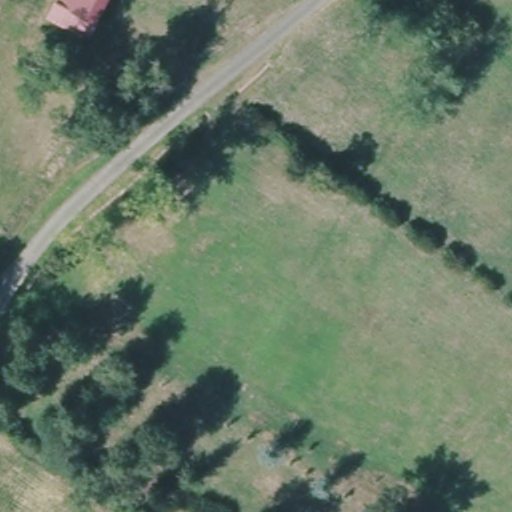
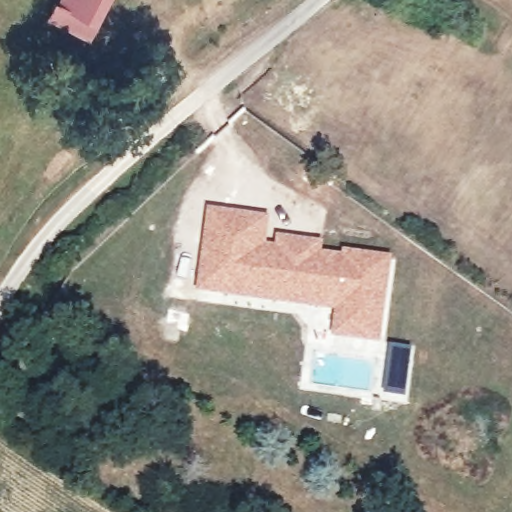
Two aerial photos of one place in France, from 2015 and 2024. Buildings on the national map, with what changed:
demolished [(48,17),(56,0),(109,0),(92,34),(48,17)]
new [(53,20),(63,0),(108,0),(89,39),(53,20)]
new [(270,217),(267,244),(276,245),(277,234),(323,240),(322,253),(342,255),(343,249),(391,255),(382,344),(332,337),(335,309),(200,293),(208,208),(270,217)]

